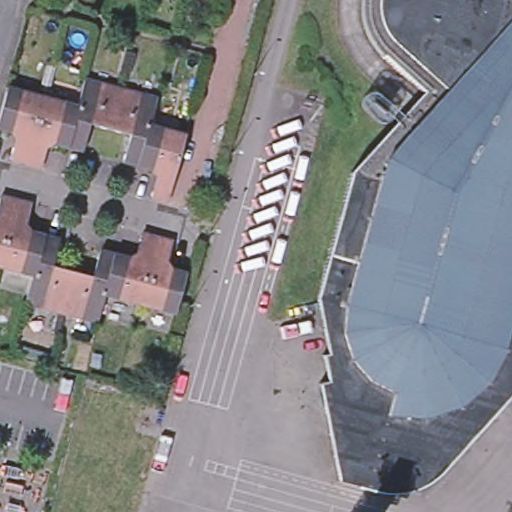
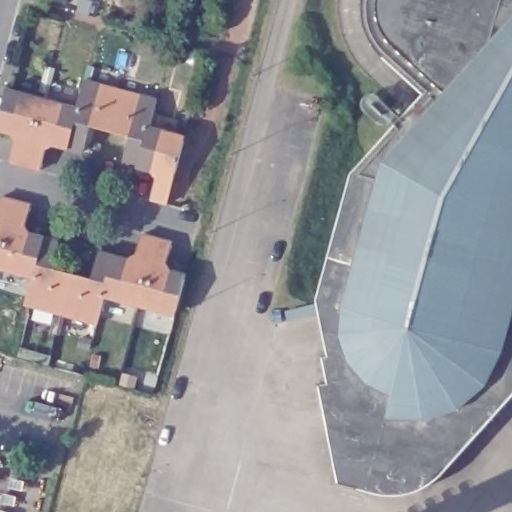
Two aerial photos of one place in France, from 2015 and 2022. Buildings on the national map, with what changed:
unchanged [(438,485),(427,492),(410,497),(396,497),(340,490),(319,391),(329,388),(323,362),(329,362),(317,306),(350,183),(421,100),(378,63),(370,47),(366,30),(363,18),(363,8),(362,0),(512,0),(512,406),(446,478),(438,485)]
unchanged [(93,131),(86,154),(72,150),(81,112),(89,85),(125,96),(114,137),(93,131)]
unchanged [(22,141),(0,136),(0,134),(11,94),(48,104),(29,171),(15,167),(22,141)]
unchanged [(125,96),(161,105),(154,132),(143,171),(128,167),(135,142),(114,137),(125,96)]
unchanged [(48,104),(81,112),(72,150),(71,154),(50,149),(43,175),(29,171),(48,104)]
unchanged [(191,142),(179,184),(178,184),(171,209),(156,205),(163,180),(142,174),(143,171),(154,132),(191,142)]
unchanged [(15,206),(0,259),(0,203),(1,202),(15,206)]
unchanged [(15,206),(29,210),(22,235),(43,241),(43,242),(31,283),(0,275),(0,259),(15,206)]
unchanged [(157,244),(138,312),(103,302),(114,262),(113,262),(113,259),(135,265),(142,240),(157,244)]
unchanged [(57,247),(51,272),(71,277),(60,320),(24,311),(31,283),(43,242),(57,247)]
unchanged [(157,244),(170,247),(163,273),(186,279),(175,322),(138,312),(157,244)]
unchanged [(71,277),(92,282),(99,257),(113,262),(114,262),(103,302),(96,330),(60,320),(71,277)]

